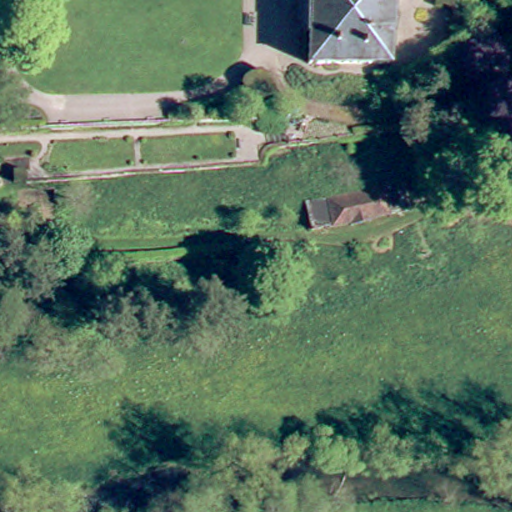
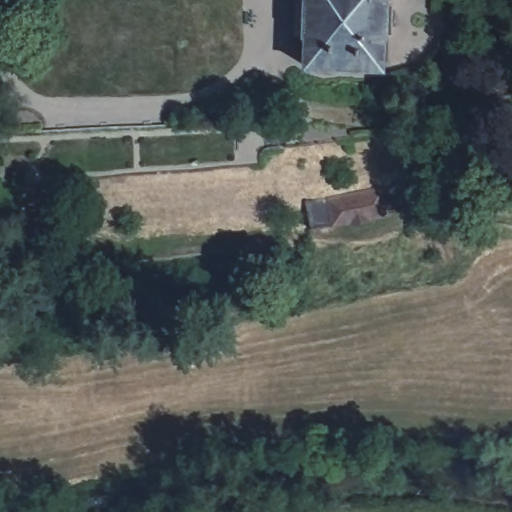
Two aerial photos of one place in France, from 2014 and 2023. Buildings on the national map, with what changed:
unchanged [(312,65),(313,34),(303,33),(304,0),(394,0),(392,67),(312,65)]
unchanged [(412,209),(316,229),(310,201),(407,182),(412,209)]

